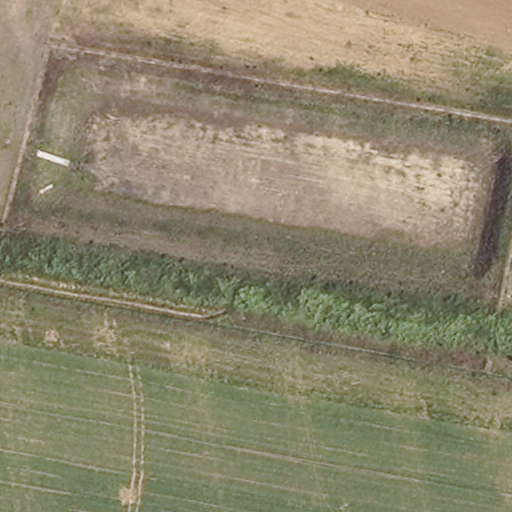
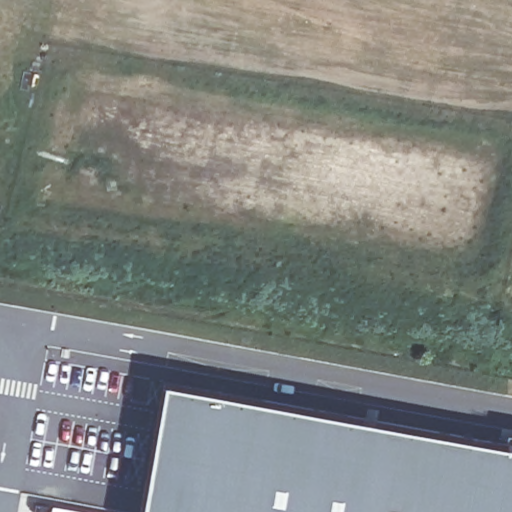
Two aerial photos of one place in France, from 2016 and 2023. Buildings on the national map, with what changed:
new [(163,383),(512,447),(512,512),(140,512),(163,383)]

